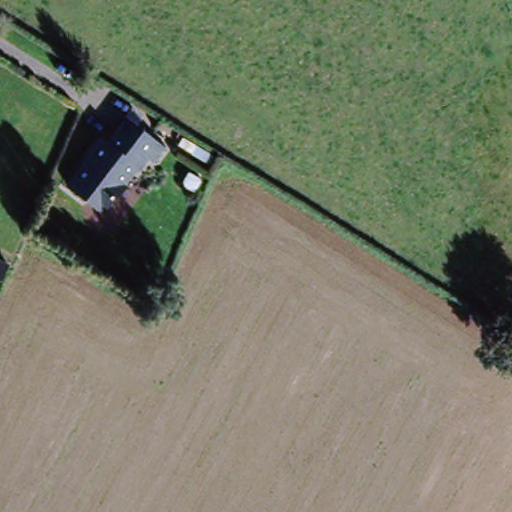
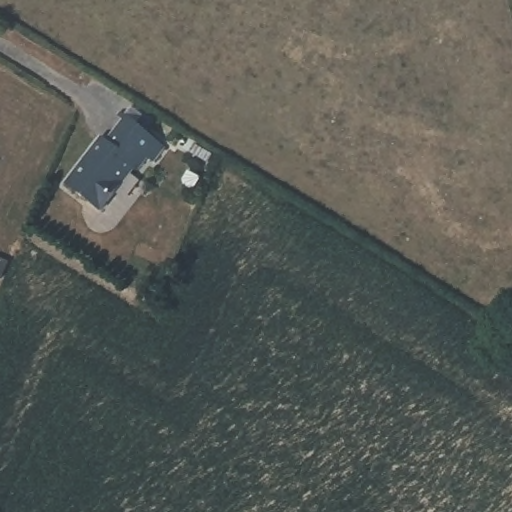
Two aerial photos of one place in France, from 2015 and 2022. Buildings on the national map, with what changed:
unchanged [(172,157),(162,170),(155,165),(111,221),(77,195),(112,150),(117,154),(136,130),(172,157)]
unchanged [(200,180),(193,191),(185,186),(183,181),(188,172),(200,180)]

